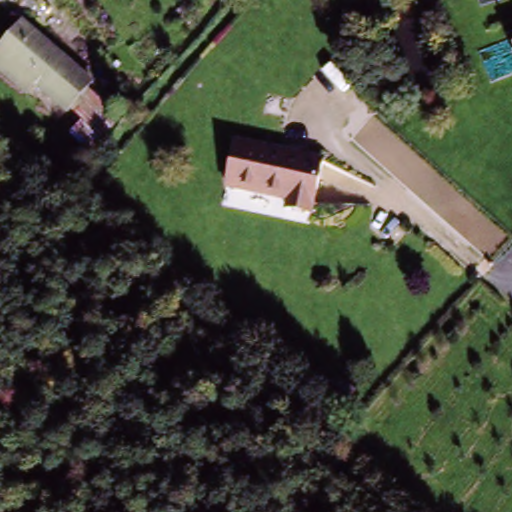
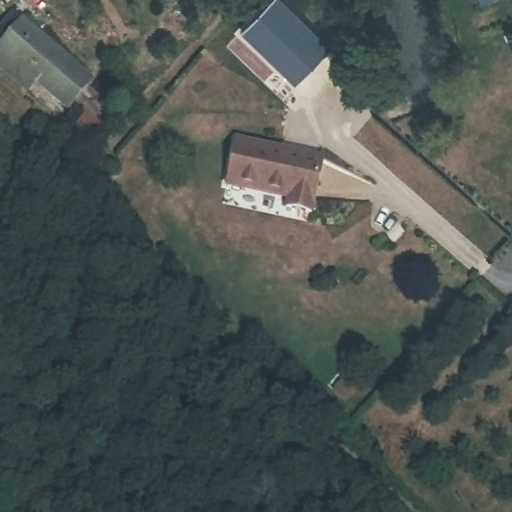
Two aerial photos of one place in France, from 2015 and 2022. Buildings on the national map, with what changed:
new [(277,0),(280,0),(332,50),(296,88),(242,35),(277,0)]
unchanged [(0,63),(0,53),(5,48),(0,43),(0,38),(24,15),(93,88),(69,113),(36,79),(27,89),(0,63)]
unchanged [(512,44),(512,58),(507,46),(512,44)]
unchanged [(238,141),(327,159),(317,214),(292,209),(293,199),(230,185),(238,141)]

